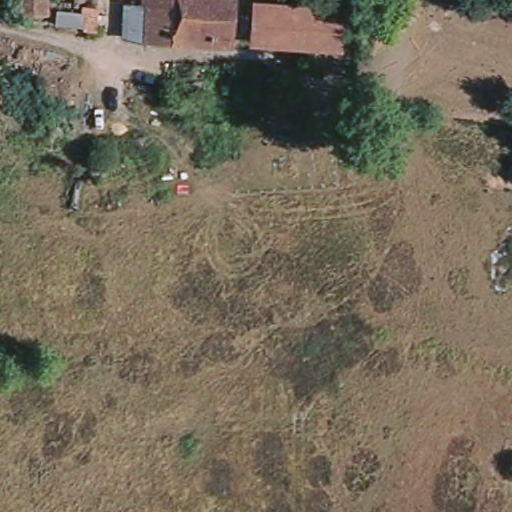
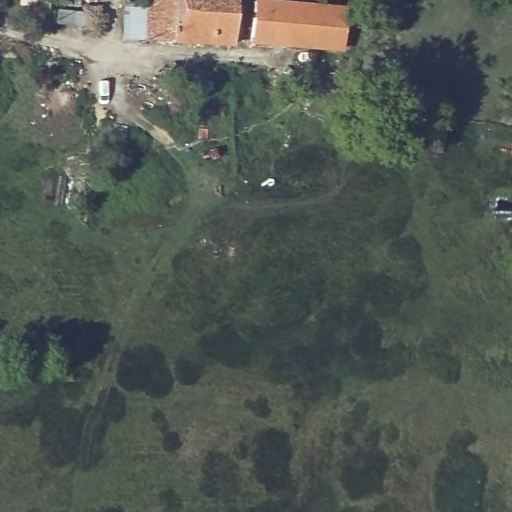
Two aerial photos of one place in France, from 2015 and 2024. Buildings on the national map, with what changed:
unchanged [(41,0),(41,11),(17,11),(17,0),(41,0)]
unchanged [(143,9),(144,0),(230,0),(225,45),(221,46),(140,39),(120,37),(123,7),(143,9)]
unchanged [(334,11),(334,49),(273,46),(257,45),(249,44),(253,3),(261,4),(334,11)]

